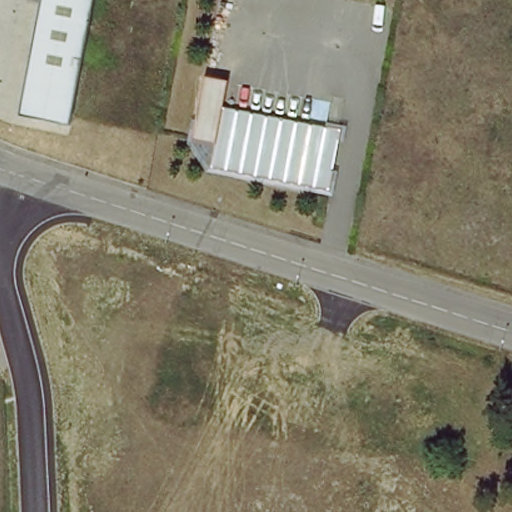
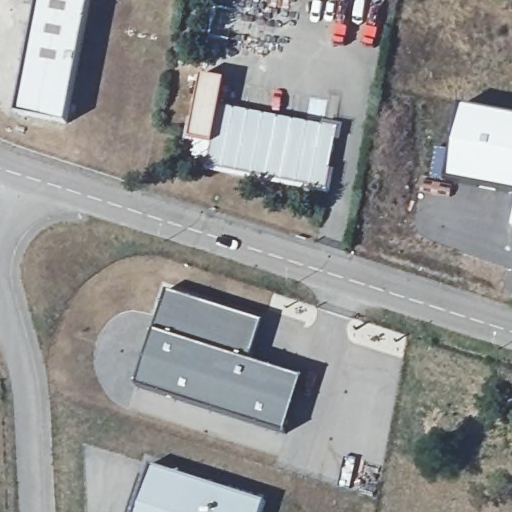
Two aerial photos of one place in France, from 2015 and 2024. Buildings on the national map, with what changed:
unchanged [(38,0),(91,0),(67,130),(30,122),(15,120),(18,105),(38,0)]
unchanged [(207,172),(211,148),(189,144),(201,80),(225,85),(220,111),(339,134),(327,195),(207,172)]
new [(434,147),(451,151),(460,105),(512,115),(512,191),(429,176),(434,147)]
new [(260,319),(249,360),(296,374),(281,428),(133,381),(164,290),(260,319)]
new [(258,499),(255,512),(128,512),(142,464),(258,499)]

